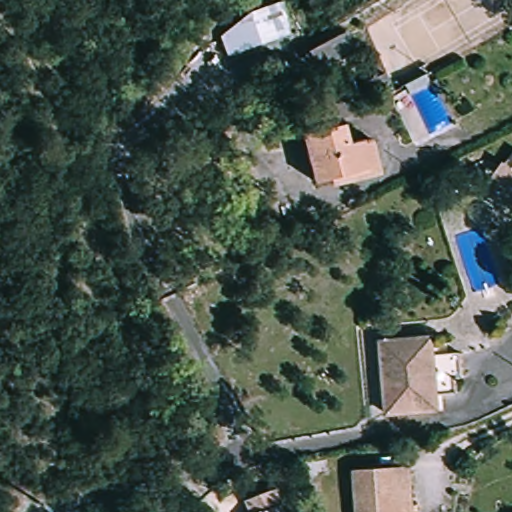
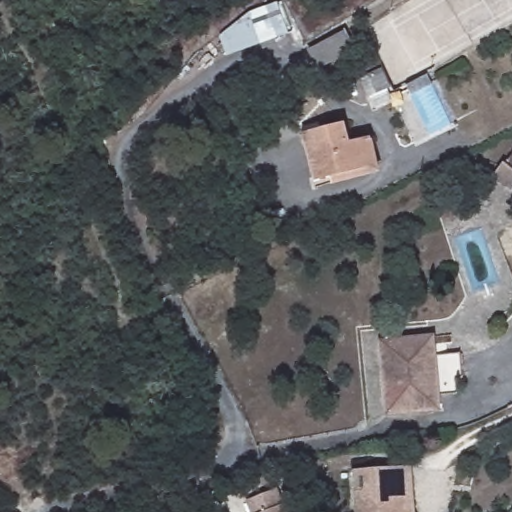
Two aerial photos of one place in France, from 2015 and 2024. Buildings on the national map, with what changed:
unchanged [(266,5),(275,34),(266,37),(256,7),(266,5)]
unchanged [(383,74),(389,88),(368,97),(361,82),(383,74)]
unchanged [(432,85),(410,96),(405,85),(427,75),(432,85)]
unchanged [(347,134),(352,153),(367,150),(374,177),(317,192),(304,145),(347,134)]
unchanged [(512,154),(512,190),(511,192),(491,177),(502,162),(504,164),(512,154)]
unchanged [(454,378),(456,393),(437,396),(438,410),(386,415),(379,342),(432,337),(433,355),(459,352),(462,378),(454,378)]
unchanged [(304,463),(326,461),(328,471),(305,472),(304,463)]
unchanged [(352,472),(409,467),(413,512),(355,512),(352,472)]
unchanged [(320,487),(326,502),(316,506),(310,492),(320,487)]
unchanged [(246,501),(274,489),(284,512),(250,512),(246,501)]

